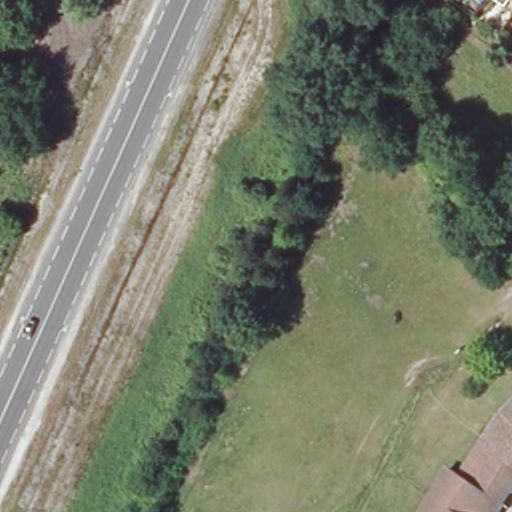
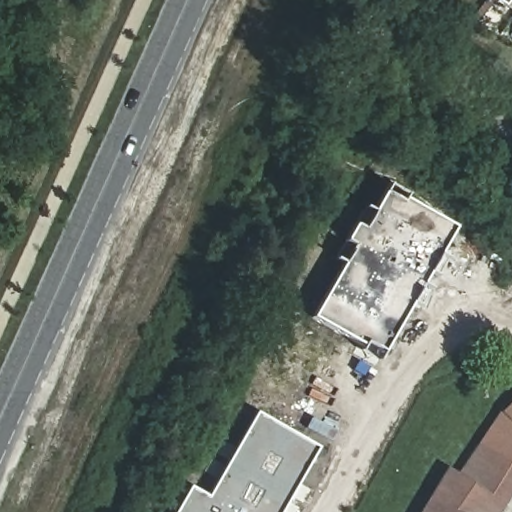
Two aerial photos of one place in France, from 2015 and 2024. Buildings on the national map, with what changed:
unchanged [(503,0),(512,0),(512,5),(512,6),(503,0)]
new [(387,191),(453,229),(380,355),(314,315),(387,191)]
unchanged [(449,467),(460,474),(502,412),(512,403),(512,495),(501,512),(421,512),(449,467)]
new [(192,488),(209,497),(257,413),(318,448),(281,512),(178,512),(192,488)]

